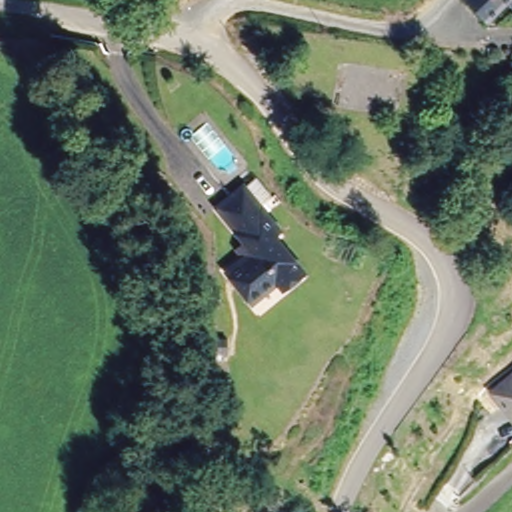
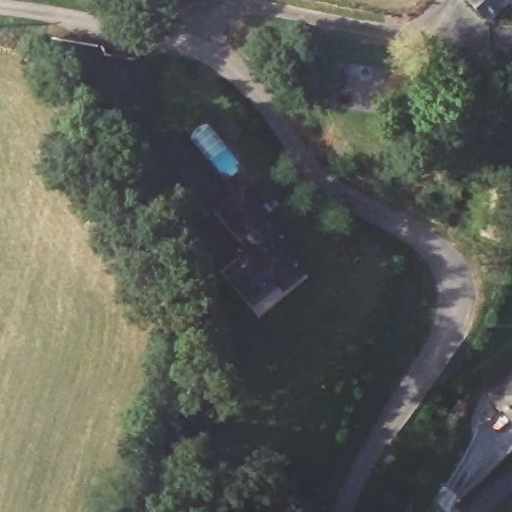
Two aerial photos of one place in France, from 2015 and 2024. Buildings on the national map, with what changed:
unchanged [(488,14),(475,0),(503,0),(502,1),(488,14)]
unchanged [(278,231),(274,236),(305,271),(285,288),(279,282),(254,307),(227,276),(250,254),(213,212),(239,189),(278,231)]
unchanged [(512,423),(488,393),(512,373),(512,423)]

